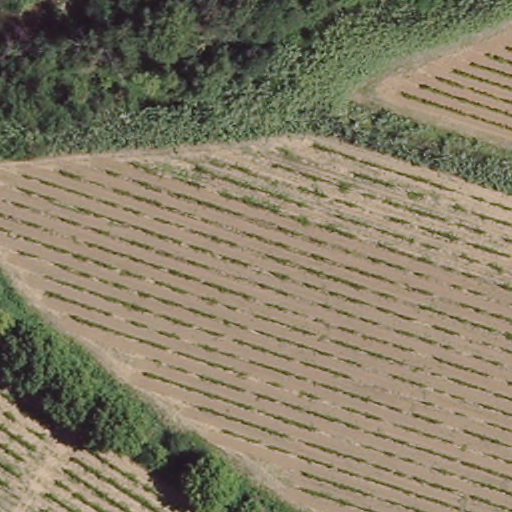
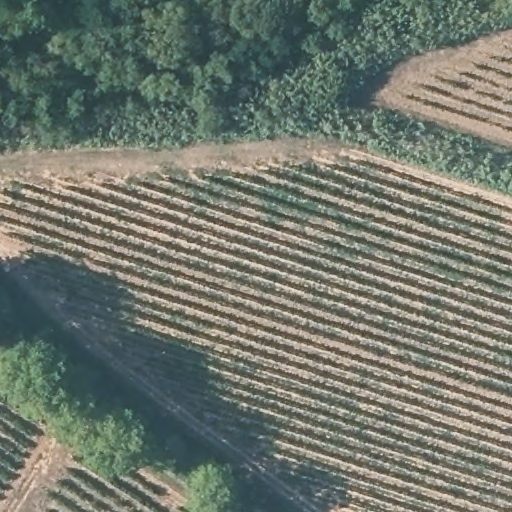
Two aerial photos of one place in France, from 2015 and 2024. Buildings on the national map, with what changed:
[]

